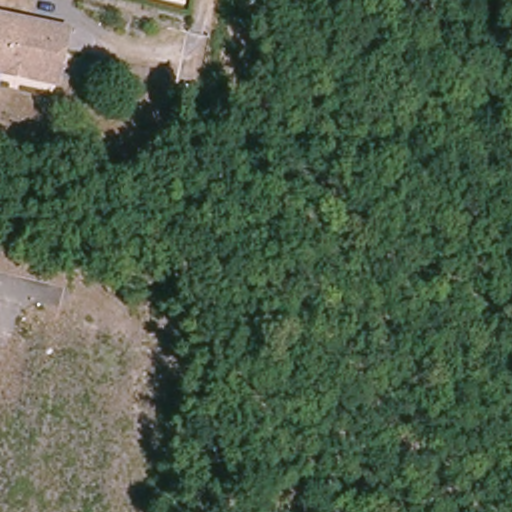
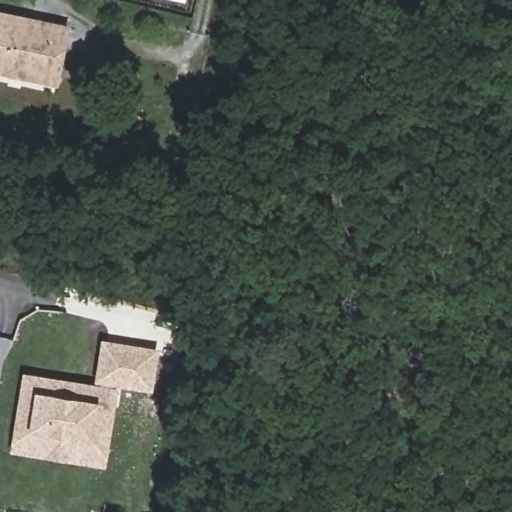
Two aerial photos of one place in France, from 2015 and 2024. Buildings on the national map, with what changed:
unchanged [(0,75),(0,11),(71,26),(60,84),(0,75)]
new [(156,346),(151,392),(119,387),(105,468),(7,452),(19,368),(91,381),(100,336),(156,346)]

